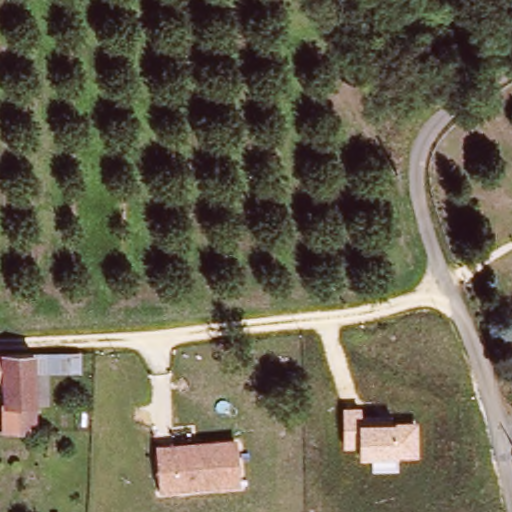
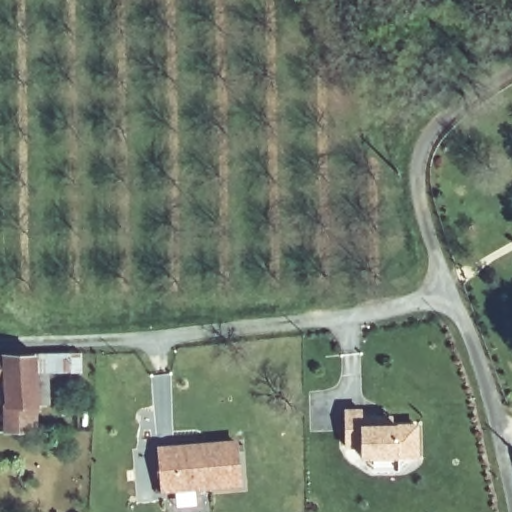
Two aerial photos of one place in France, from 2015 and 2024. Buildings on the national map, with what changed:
unchanged [(67,396),(65,375),(50,376),(50,404),(39,404),(38,434),(5,433),(4,406),(0,405),(0,398),(0,354),(3,354),(38,354),(81,354),(81,397),(67,396)]
unchanged [(363,409),(365,425),(396,425),(418,424),(419,457),(399,457),(360,459),(360,447),(345,447),(343,409),(363,409)]
unchanged [(158,447),(240,439),(243,487),(162,495),(158,447)]

